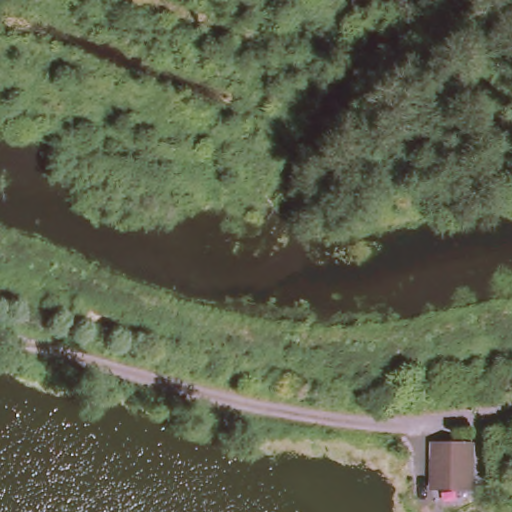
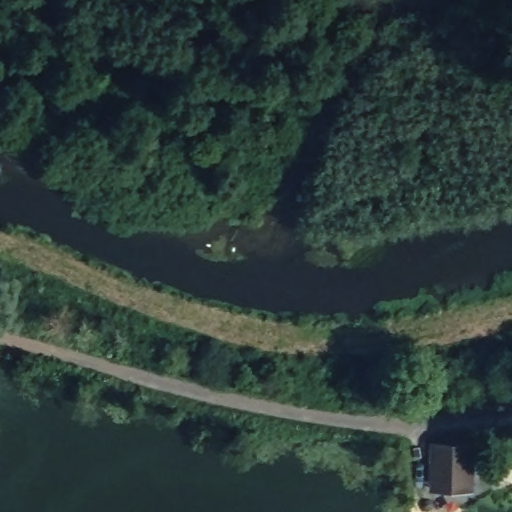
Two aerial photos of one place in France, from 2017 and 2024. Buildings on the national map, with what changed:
unchanged [(487,512),(453,512),(446,510),(456,471),(495,482),(487,512)]

